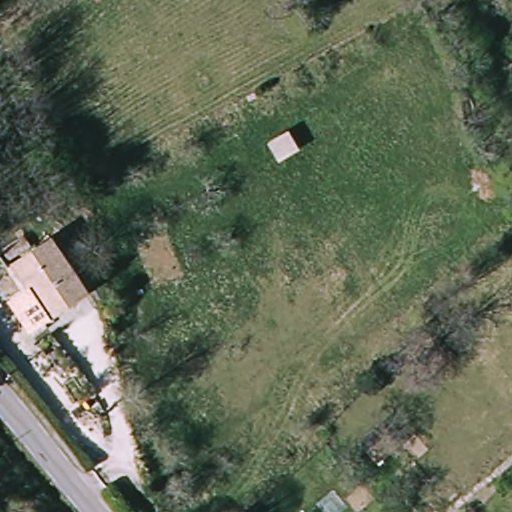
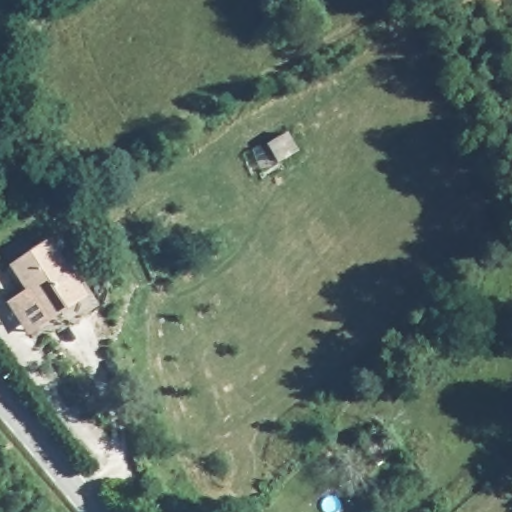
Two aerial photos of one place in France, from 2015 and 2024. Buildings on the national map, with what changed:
unchanged [(84,297),(49,322),(13,271),(48,246),(84,297)]
unchanged [(29,335),(6,303),(26,290),(49,322),(29,335)]

